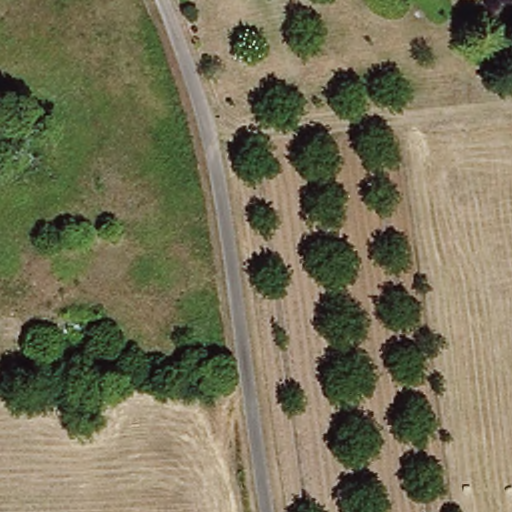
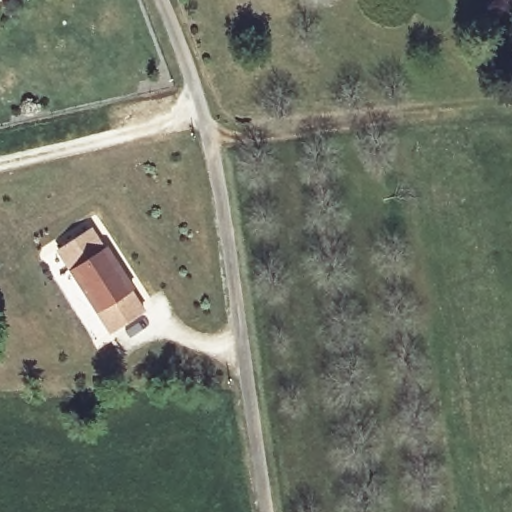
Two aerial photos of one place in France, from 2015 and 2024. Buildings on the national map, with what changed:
new [(90,229),(103,249),(106,247),(133,290),(131,292),(144,312),(111,333),(58,249),(90,229)]

